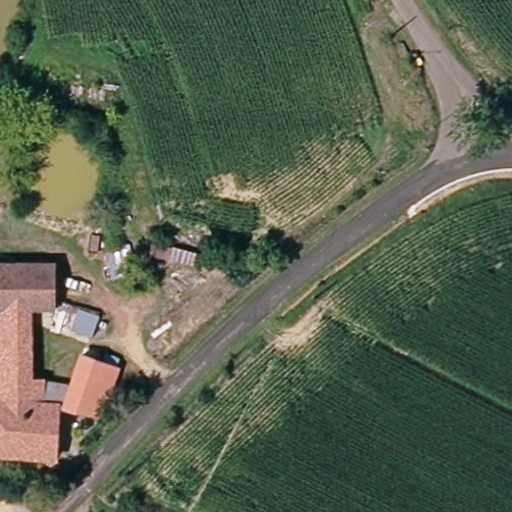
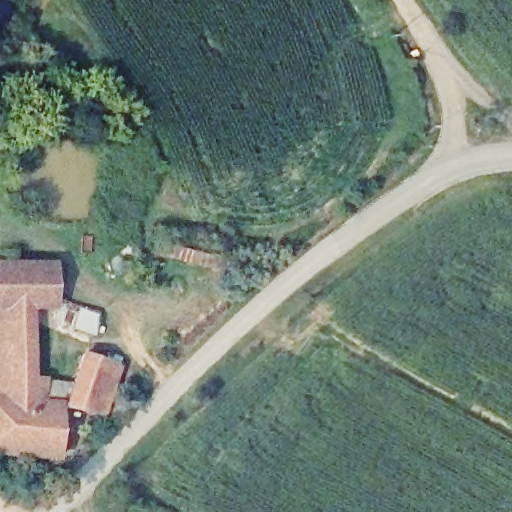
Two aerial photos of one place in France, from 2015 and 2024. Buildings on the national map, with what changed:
unchanged [(33,310),(27,376),(40,376),(45,381),(45,397),(60,397),(58,450),(0,445),(0,257),(50,262),(48,311),(33,310)]
unchanged [(103,407),(72,397),(87,353),(118,365),(103,407)]

